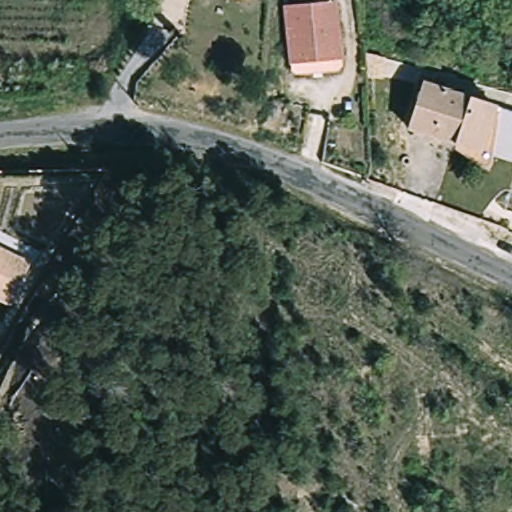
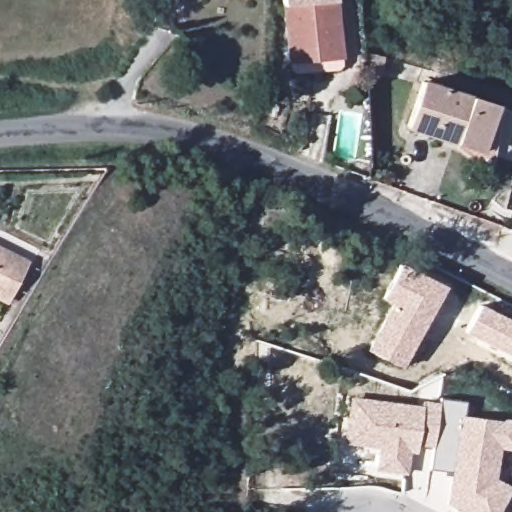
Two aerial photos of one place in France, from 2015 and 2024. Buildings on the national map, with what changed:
unchanged [(284,11),(299,10),(298,0),(321,0),(321,9),(337,6),(341,60),(288,63),(284,11)]
unchanged [(364,46),(390,54),(384,73),(365,67),(364,46)]
unchanged [(488,172),(457,147),(410,131),(425,82),(500,108),(512,112),(512,155),(496,149),(488,172)]
unchanged [(31,268),(10,307),(0,300),(0,248),(31,268)]
new [(367,353),(392,306),(381,300),(399,265),(445,287),(403,369),(367,353)]
new [(512,358),(465,334),(480,305),(512,321),(512,358)]
new [(375,471),(378,450),(345,445),(350,398),(421,406),(421,401),(439,402),(439,398),(465,402),(462,416),(500,420),(500,417),(512,418),(512,450),(500,449),(495,479),(512,488),(512,489),(500,512),(462,512),(447,505),(451,472),(430,471),(434,447),(419,445),(417,455),(410,454),(407,475),(375,471)]

